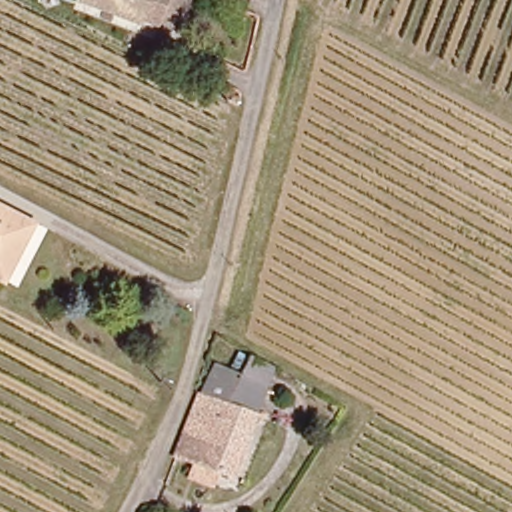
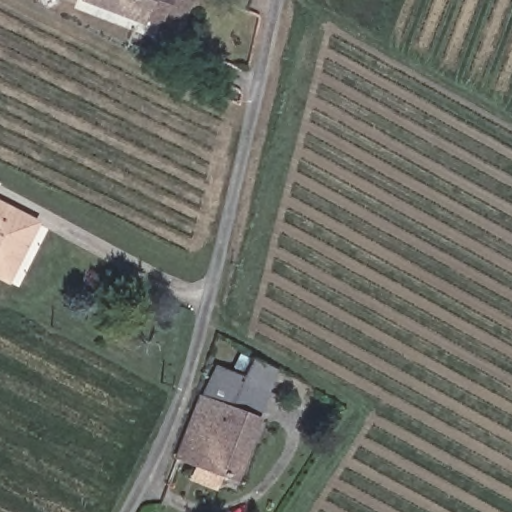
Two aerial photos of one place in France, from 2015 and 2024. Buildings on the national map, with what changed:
unchanged [(153,15),(136,10),(134,15),(96,0),(183,0),(175,24),(153,15)]
unchanged [(34,224),(6,281),(0,278),(0,207),(34,224)]
unchanged [(190,475),(196,462),(179,455),(204,393),(210,396),(218,368),(241,378),(250,357),(274,367),(232,477),(222,473),(217,485),(190,475)]

